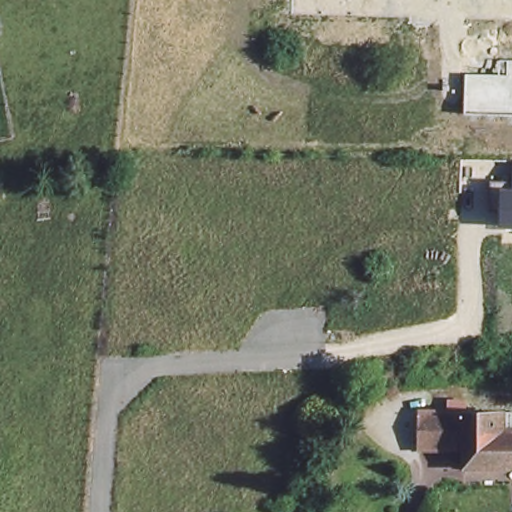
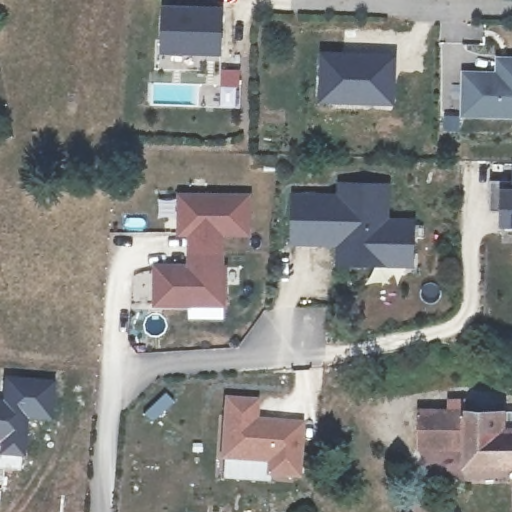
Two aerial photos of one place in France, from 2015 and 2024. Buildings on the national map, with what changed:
new [(223,5),(223,54),(161,53),(161,5),(177,5),(177,0),(212,0),(212,5),(223,5)]
new [(317,103),(320,52),(396,54),(394,105),(317,103)]
unchanged [(466,74),(499,75),(500,61),(512,62),(512,114),(465,114),(466,74)]
new [(291,192),(338,192),(338,181),(391,182),(390,217),(416,217),(415,267),(336,266),(337,246),(290,246),(291,192)]
unchanged [(500,211),(489,210),(490,181),(512,181),(512,228),(499,227),(500,211)]
new [(158,266),(192,266),(193,232),(186,232),(186,217),(182,217),(182,195),(250,195),(250,232),(224,232),(223,266),(226,266),(226,300),(191,299),(191,303),(158,303),(158,266)]
new [(1,391),(3,375),(57,380),(54,423),(30,422),(26,458),(0,457),(0,391),(1,391)]
new [(257,419),(304,422),(299,477),(267,475),(266,463),(221,460),(225,397),(258,400),(257,419)]
unchanged [(459,463),(459,442),(415,442),(415,407),(512,409),(512,464),(459,463)]

